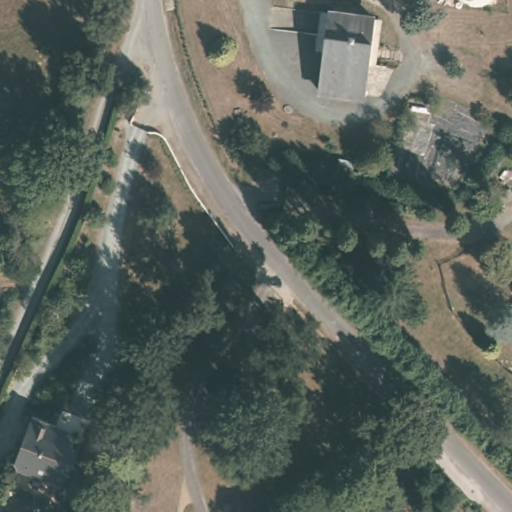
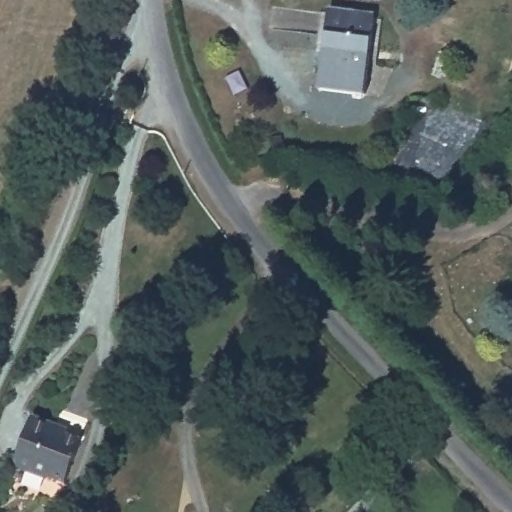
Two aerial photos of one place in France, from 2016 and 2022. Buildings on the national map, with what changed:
unchanged [(329,46),(333,13),(372,17),(365,94),(316,90),(321,45),(329,46)]
unchanged [(51,422),(50,428),(80,441),(64,482),(18,471),(12,460),(30,413),(51,422)]

